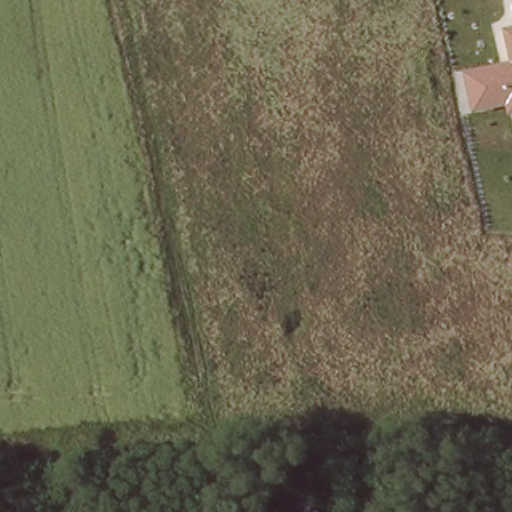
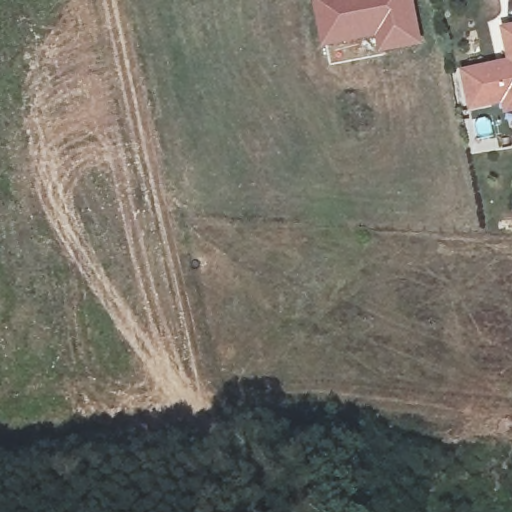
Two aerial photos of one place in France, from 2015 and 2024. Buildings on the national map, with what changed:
new [(376,55),(373,39),(320,46),(313,0),(415,0),(425,45),(376,55)]
unchanged [(505,105),(470,114),(462,70),(509,60),(503,27),(512,25),(512,112),(506,114),(505,105)]

